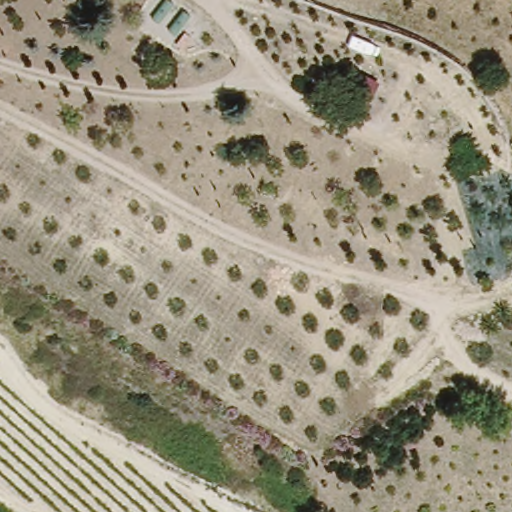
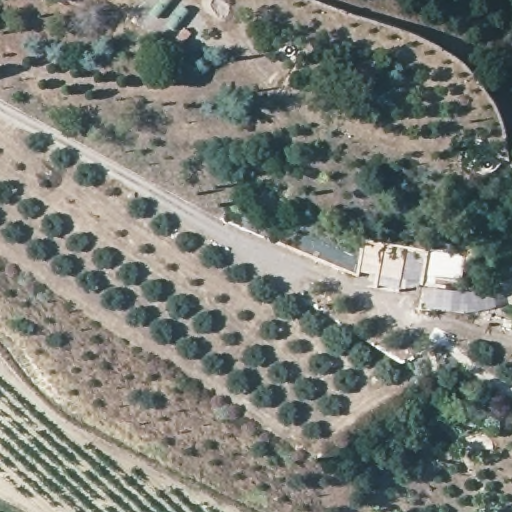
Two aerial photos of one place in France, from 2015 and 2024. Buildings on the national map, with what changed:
unchanged [(507,187),(512,184),(512,194),(507,187)]

